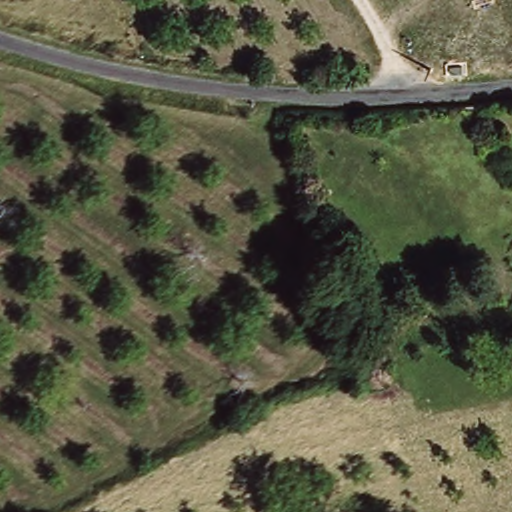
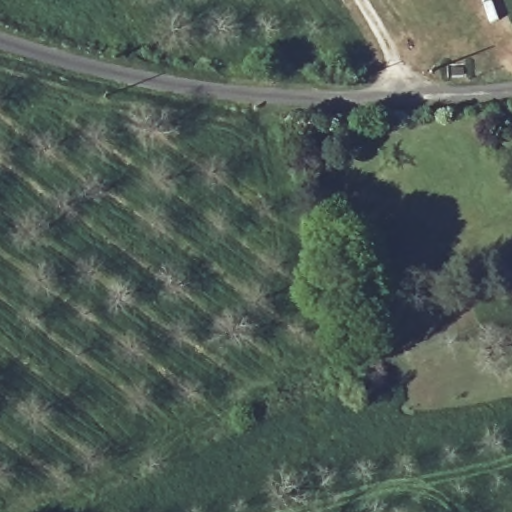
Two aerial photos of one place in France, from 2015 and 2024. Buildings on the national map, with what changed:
unchanged [(384,75),(380,65),(389,62),(393,72),(384,75)]

